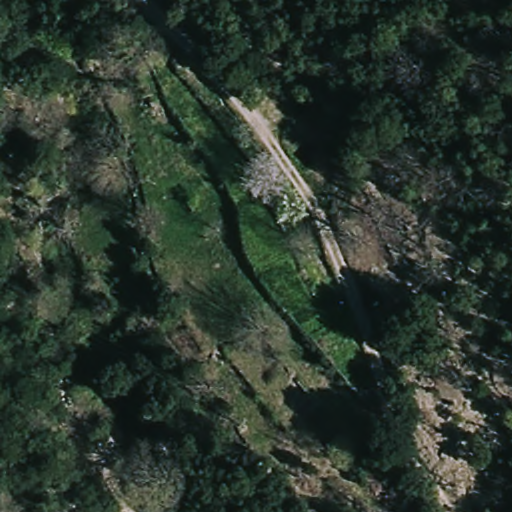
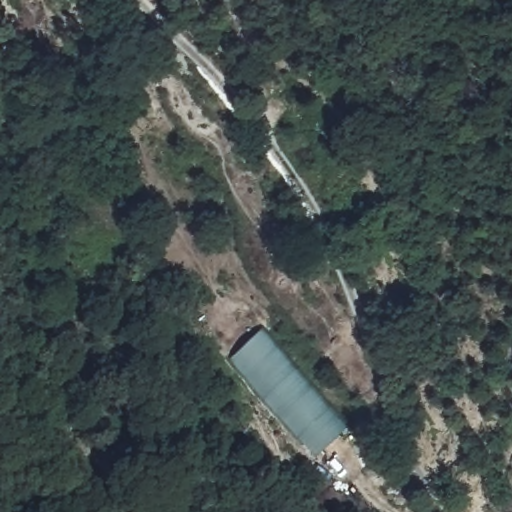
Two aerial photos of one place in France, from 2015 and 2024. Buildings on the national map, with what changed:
new [(227,361),(264,329),(347,426),(313,458),(227,361)]

